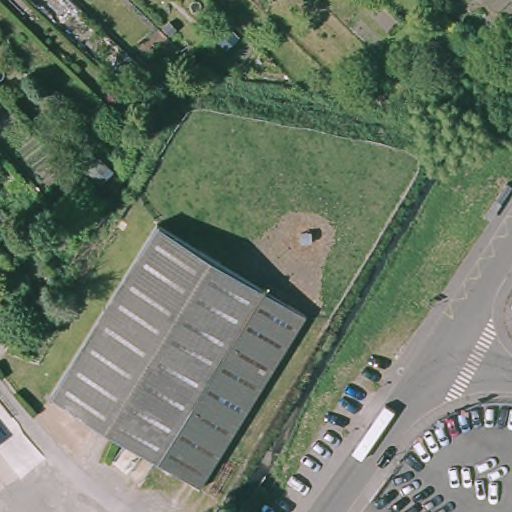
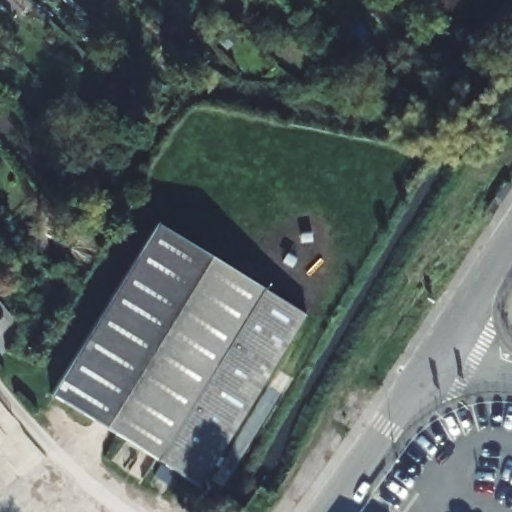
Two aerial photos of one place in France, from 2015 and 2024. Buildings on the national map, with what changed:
unchanged [(153,222),(302,316),(194,486),(44,392),(153,222)]

